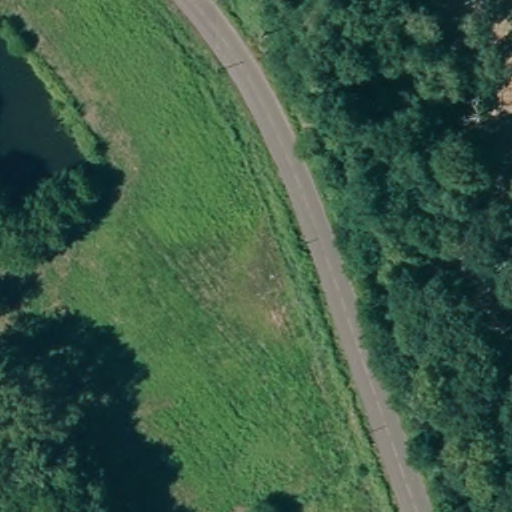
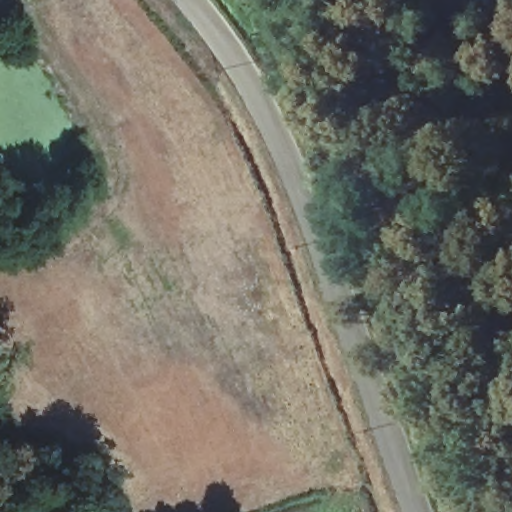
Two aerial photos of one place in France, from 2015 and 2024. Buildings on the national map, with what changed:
unchanged [(507,31),(507,51),(485,51),(485,31),(507,31)]

